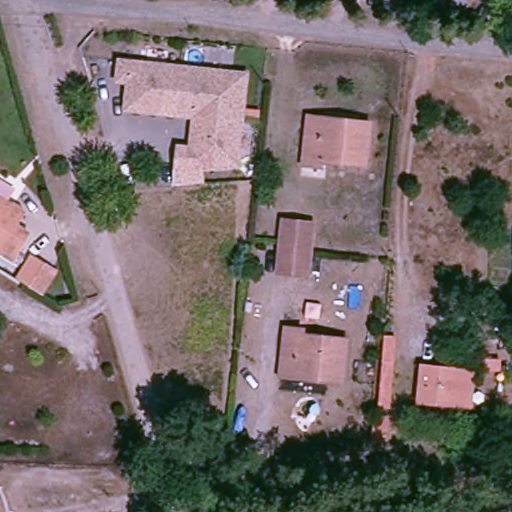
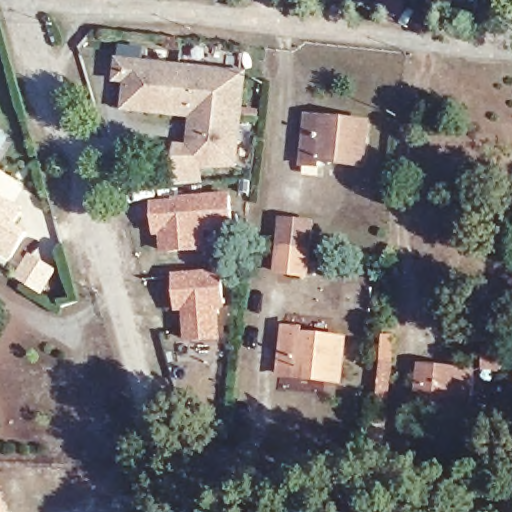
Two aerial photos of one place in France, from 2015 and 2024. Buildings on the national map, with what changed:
unchanged [(458,7),(436,0),(460,0),(458,7)]
unchanged [(177,147),(190,148),(193,116),(130,108),(131,98),(126,97),(128,80),(117,79),(119,60),(245,75),(235,165),(175,169),(177,147)]
unchanged [(326,129),(328,114),(373,119),(369,160),(323,155),(322,160),(308,159),(311,128),(326,129)]
new [(231,192),(236,245),(162,254),(160,237),(154,237),(151,200),(231,192)]
unchanged [(27,218),(20,231),(32,239),(17,264),(0,253),(0,202),(27,218)]
unchanged [(281,268),(284,242),(287,216),(317,219),(315,245),(311,272),(281,268)]
unchanged [(32,267),(50,278),(42,291),(25,280),(32,267)]
new [(224,268),(226,311),(221,312),(224,340),(186,344),(181,312),(176,312),(173,272),(224,268)]
unchanged [(300,372),(302,357),(287,355),(290,324),(306,326),(305,331),(350,336),(346,376),(300,372)]
unchanged [(423,397),(426,362),(477,367),(473,401),(423,397)]
unchanged [(0,512),(0,478),(11,512),(0,512)]

